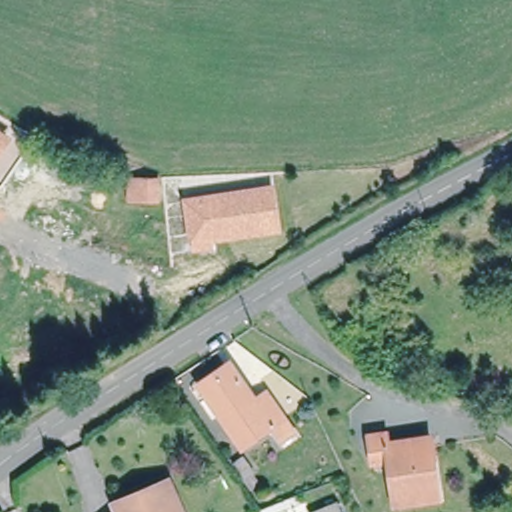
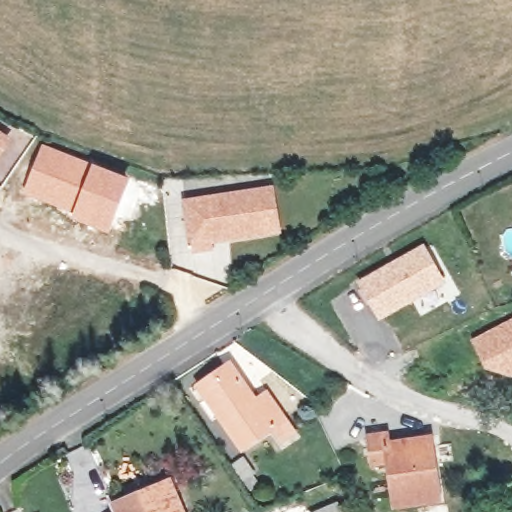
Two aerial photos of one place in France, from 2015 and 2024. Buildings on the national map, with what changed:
unchanged [(0,157),(0,129),(14,139),(0,157)]
new [(42,142),(131,177),(109,234),(72,215),(22,192),(42,142)]
unchanged [(157,201),(137,202),(136,182),(156,180),(157,201)]
unchanged [(275,185),(283,233),(213,242),(214,252),(192,253),(182,198),(275,185)]
new [(448,282),(379,322),(357,281),(423,242),(448,282)]
new [(489,372),(471,340),(512,319),(512,378),(489,372)]
unchanged [(280,437),(272,425),(241,446),(197,382),(229,360),(255,397),(266,390),(284,417),(292,428),(280,437)]
unchanged [(386,436),(387,445),(429,439),(438,502),(394,507),(387,463),(372,466),(368,438),(386,436)]
unchanged [(241,455),(252,471),(242,478),(231,462),(241,455)]
unchanged [(180,512),(115,512),(112,507),(139,495),(167,482),(180,512)]
unchanged [(337,512),(318,512),(335,505),(337,512)]

